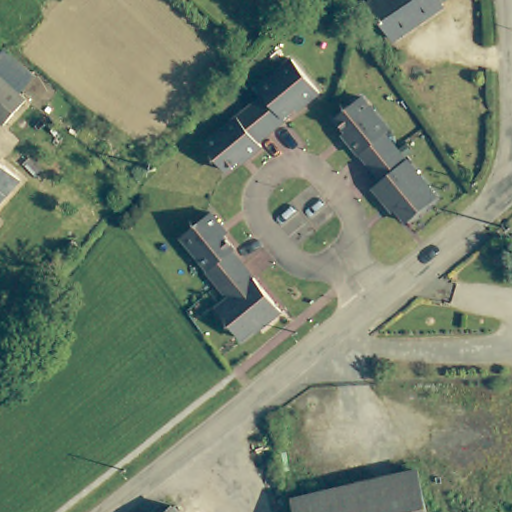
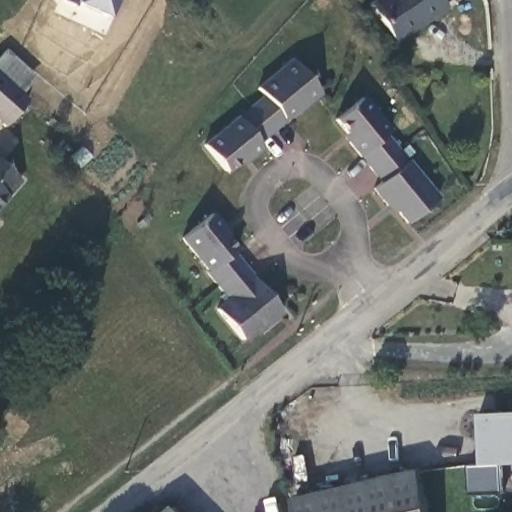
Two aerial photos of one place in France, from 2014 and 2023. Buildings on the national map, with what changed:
unchanged [(439,4),(442,9),(390,38),(368,0),(369,0),(446,0),(439,4)]
unchanged [(304,109),(301,105),(283,121),(286,124),(257,146),(262,151),(247,163),(244,160),(224,176),(204,150),(262,102),(256,94),(293,64),(320,96),(304,109)]
unchanged [(26,101),(2,126),(0,125),(0,75),(26,101)]
unchanged [(336,121),(363,99),(390,132),(387,135),(440,198),(409,224),(393,204),(389,207),(375,190),(382,184),(349,144),(353,141),(336,121)]
unchanged [(19,181),(0,203),(0,164),(19,181)]
unchanged [(263,326),(243,342),(219,313),(228,305),(206,277),(207,275),(182,243),(211,219),(222,233),(220,235),(235,254),(233,256),(283,315),(266,329),(263,326)]
new [(503,492),(471,494),(470,466),(481,465),(478,413),(512,412),(512,463),(502,464),(503,492)]
unchanged [(300,512),(297,501),(419,476),(427,512),(300,512)]
unchanged [(178,512),(175,512),(176,511),(178,512)]

